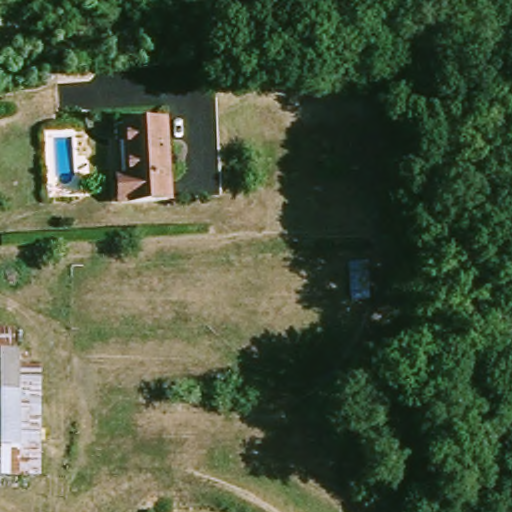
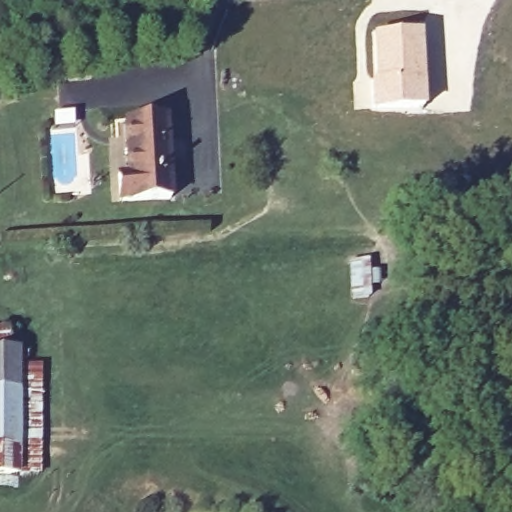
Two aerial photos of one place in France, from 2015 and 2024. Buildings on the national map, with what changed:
new [(372,34),(422,30),(425,109),(371,110),(372,34)]
unchanged [(168,120),(171,199),(120,203),(119,176),(129,175),(127,123),(168,120)]
unchanged [(7,333),(9,350),(0,351),(0,334),(7,333)]
unchanged [(0,481),(0,357),(18,357),(18,359),(26,359),(26,366),(18,366),(18,372),(18,480),(0,481)]
unchanged [(40,371),(39,480),(18,480),(18,372),(40,371)]

